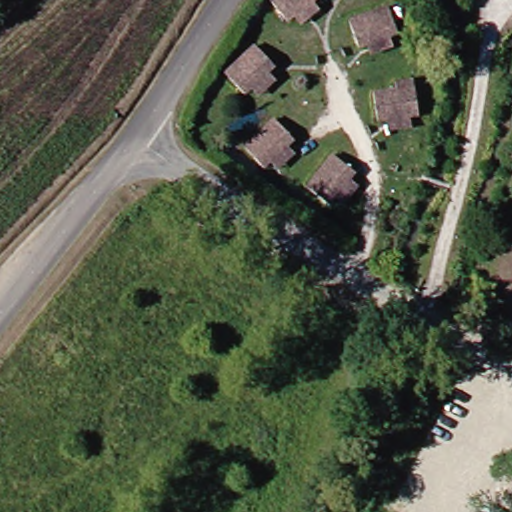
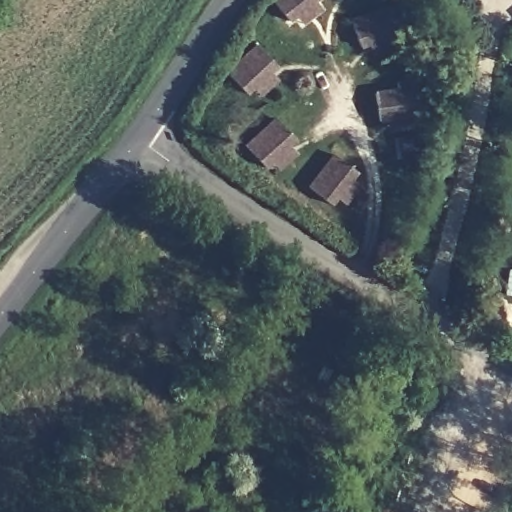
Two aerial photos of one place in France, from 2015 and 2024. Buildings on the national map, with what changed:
unchanged [(303,20),(295,26),(277,5),(284,0),(322,0),(324,3),(316,9),(320,15),(307,24),(303,20)]
unchanged [(379,38),(368,41),(360,15),(400,1),(410,28),(398,31),(401,40),(381,46),(379,38)]
unchanged [(261,93),(257,87),(248,95),(231,76),(261,46),(279,68),(273,73),(278,79),(261,93)]
unchanged [(398,122),(398,115),(386,116),(383,89),(405,86),(405,77),(426,75),(429,111),(419,113),(420,121),(398,122)]
unchanged [(287,172),(279,163),(269,171),(252,151),(283,124),(301,144),(295,149),(301,158),(287,172)]
unchanged [(353,201),(345,195),(337,205),(317,189),(343,156),(363,173),(357,180),(365,186),(353,201)]

